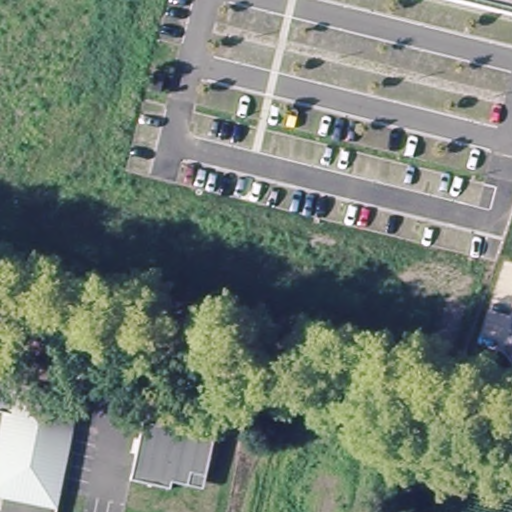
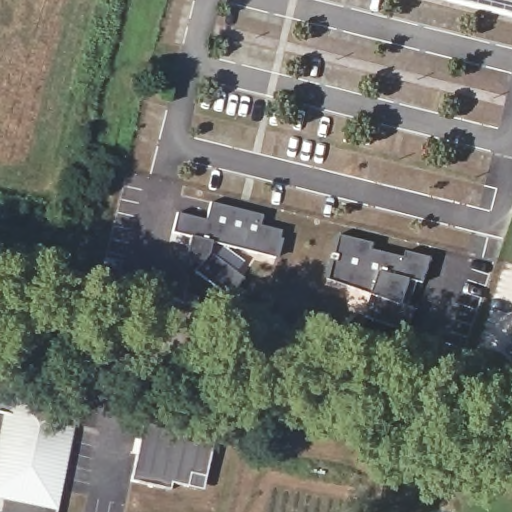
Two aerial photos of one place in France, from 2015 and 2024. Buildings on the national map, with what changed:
unchanged [(440,0),(512,0),(512,16),(440,0)]
unchanged [(164,109),(152,106),(157,88),(167,90),(164,109)]
new [(177,210),(205,217),(211,200),(264,214),(262,224),(283,229),(277,258),(232,248),(189,237),(171,232),(177,210)]
new [(340,231),(376,241),(375,246),(404,254),(406,248),(433,256),(424,283),(413,280),(405,306),(326,279),(340,231)]
new [(189,237),(232,248),(231,251),(245,262),(237,272),(244,277),(232,293),(182,262),(189,237)]
unchanged [(0,485),(17,408),(7,406),(11,388),(21,390),(31,381),(92,395),(67,506),(0,492),(0,485)]
unchanged [(188,485),(172,481),(170,488),(131,478),(144,421),(215,436),(206,475),(203,488),(188,485)]

